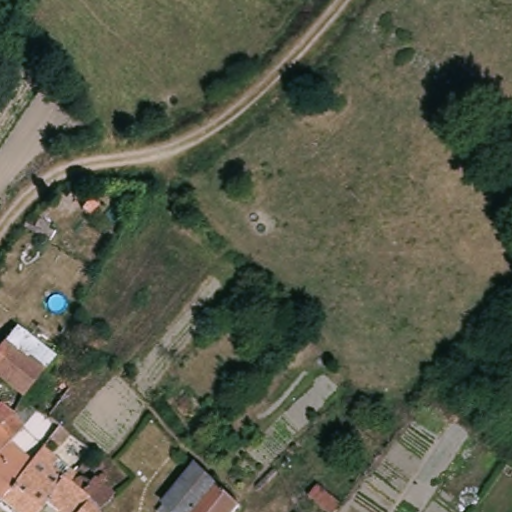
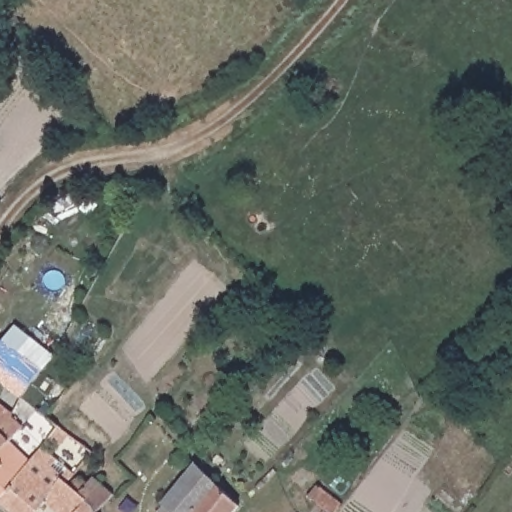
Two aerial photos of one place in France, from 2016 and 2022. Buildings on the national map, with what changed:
unchanged [(44,368),(36,377),(32,380),(20,395),(0,381),(0,344),(12,328),(44,353),(52,359),(44,368)]
unchanged [(14,457),(27,469),(26,471),(0,500),(0,415),(7,421),(20,433),(17,437),(22,447),(14,457)]
unchanged [(39,456),(40,455),(48,462),(71,481),(87,484),(91,481),(111,500),(99,512),(50,512),(47,509),(44,512),(9,512),(0,504),(0,500),(26,471),(27,469),(39,456)]
unchanged [(165,501),(195,469),(206,479),(215,488),(194,512),(155,512),(162,505),(165,501)]
unchanged [(237,509),(234,512),(194,512),(215,488),(237,509)]
unchanged [(321,512),(313,506),(308,503),(318,492),(342,510),(340,512),(321,512)]

